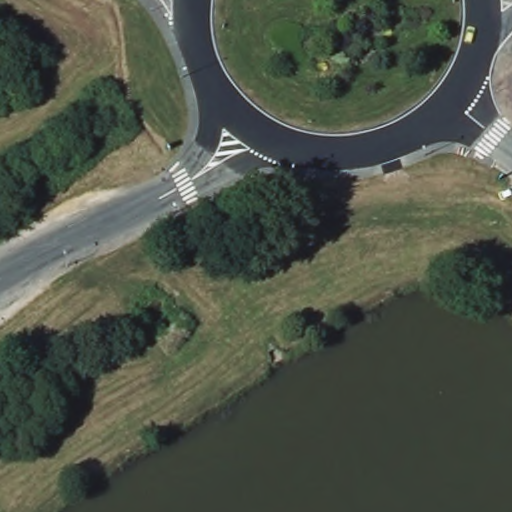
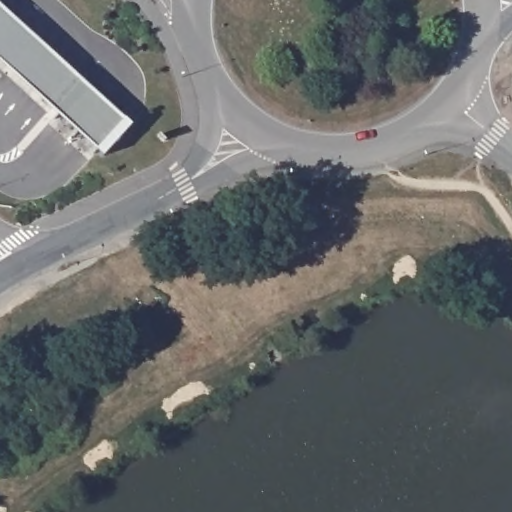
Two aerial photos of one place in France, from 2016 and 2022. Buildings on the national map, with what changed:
new [(59,114),(52,108),(0,61),(0,4),(80,77),(87,83),(126,118),(133,125),(105,156),(97,150),(59,114)]

